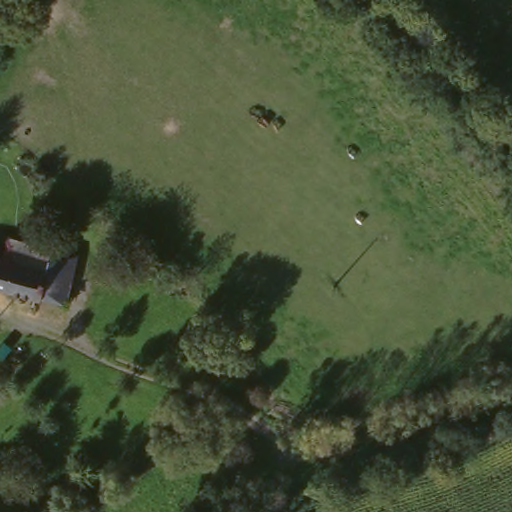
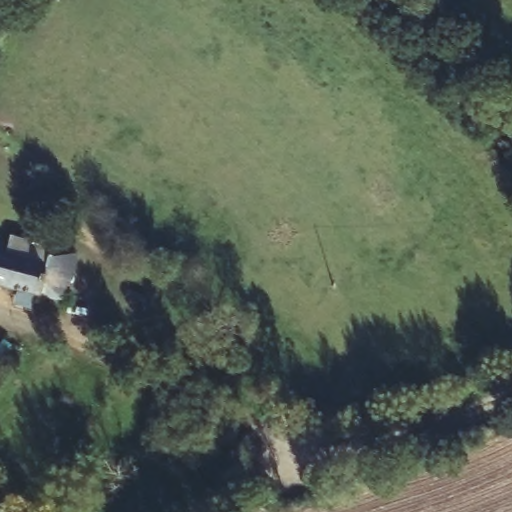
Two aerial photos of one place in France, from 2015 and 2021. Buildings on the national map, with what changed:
unchanged [(0,245),(1,241),(36,251),(56,257),(66,260),(56,307),(0,292),(0,245)]

